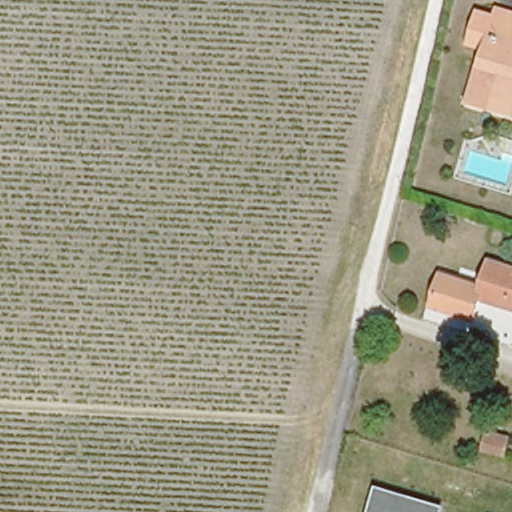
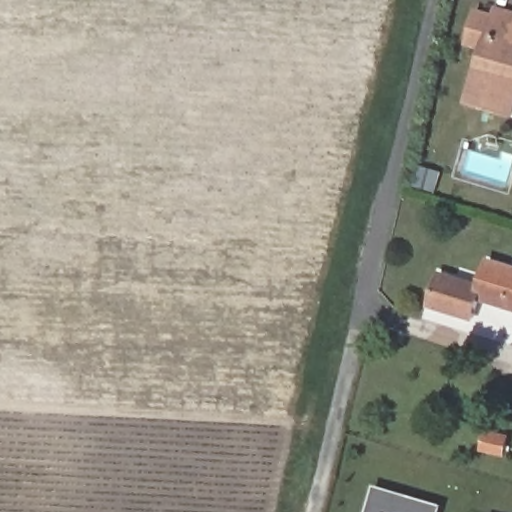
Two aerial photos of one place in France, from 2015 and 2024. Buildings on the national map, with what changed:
unchanged [(477,73),(480,74),(486,52),(468,48),(478,13),(495,18),(512,22),(512,121),(468,110),(477,73)]
unchanged [(427,307),(437,275),(478,287),(486,261),(512,269),(512,310),(476,299),(470,320),(427,307)]
unchanged [(484,437),(506,443),(501,461),(480,455),(484,437)]
unchanged [(441,508),(440,512),(366,512),(373,487),(441,508)]

